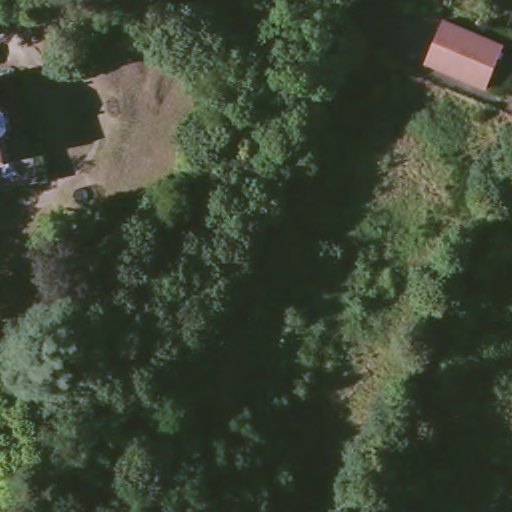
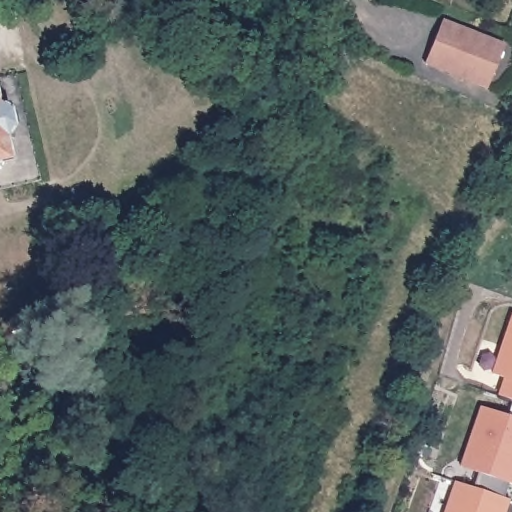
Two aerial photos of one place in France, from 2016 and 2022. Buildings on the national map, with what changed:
unchanged [(427,54),(442,20),(496,43),(503,46),(496,61),(488,80),(485,86),(484,87),(424,61),(427,54)]
unchanged [(3,113),(5,127),(0,132),(0,111),(3,113)]
new [(507,375),(497,371),(512,326),(512,396),(500,392),(507,375)]
new [(481,406),(512,416),(512,483),(482,473),(461,466),(465,452),(481,406)]
new [(459,482),(507,498),(502,512),(449,512),(459,482)]

